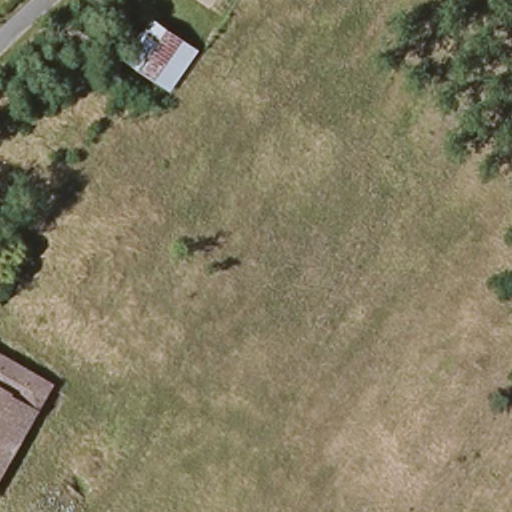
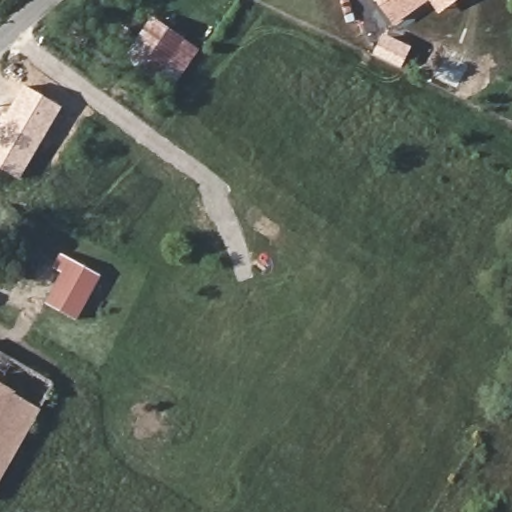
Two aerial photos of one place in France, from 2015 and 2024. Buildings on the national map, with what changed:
new [(394,26),(376,0),(459,0),(439,15),(429,1),(394,26)]
unchanged [(135,50),(156,14),(205,53),(177,91),(135,50)]
new [(61,108),(20,179),(0,168),(0,126),(1,124),(0,123),(0,118),(4,112),(7,114),(24,86),(61,108)]
new [(75,321),(45,303),(61,272),(54,268),(61,255),(100,276),(75,321)]
unchanged [(50,378),(60,384),(0,486),(0,350),(18,360),(50,378)]

